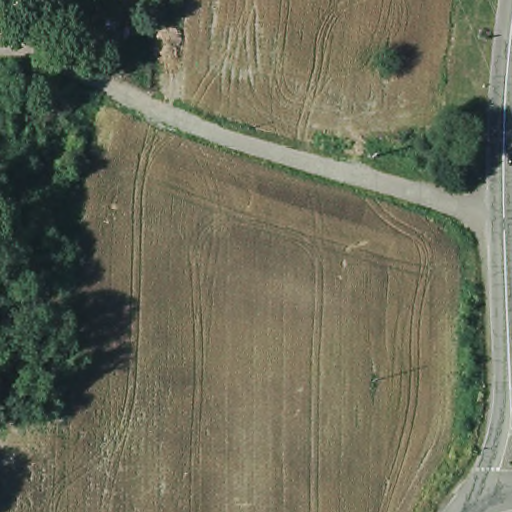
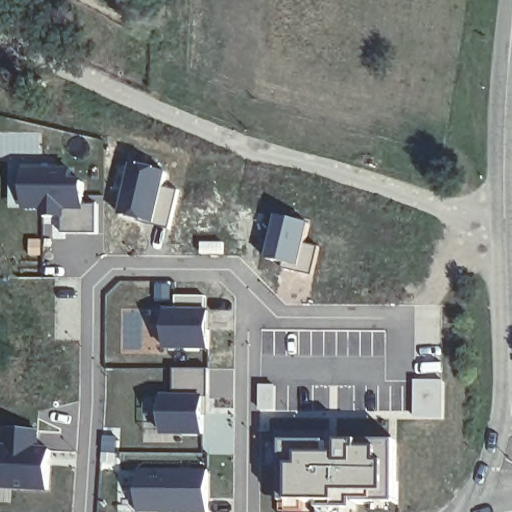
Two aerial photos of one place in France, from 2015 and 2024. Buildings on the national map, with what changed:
new [(132,162),(167,171),(164,188),(177,191),(168,228),(119,215),(132,162)]
new [(97,232),(62,232),(62,215),(44,215),(44,206),(25,206),(25,169),(71,169),(71,181),(84,181),(84,203),(97,203),(97,232)]
new [(275,215),(311,223),(306,243),(320,246),(313,276),(264,259),(275,215)]
new [(209,310),(209,347),(166,347),(166,310),(209,310)]
new [(209,368),(209,397),(204,397),(204,433),(162,432),(163,396),(173,395),(174,367),(209,368)]
new [(449,382),(447,421),(418,421),(417,382),(449,382)]
new [(2,428),(37,430),(36,448),(50,449),(47,487),(0,484),(0,446),(1,446),(2,428)]
new [(357,461),(357,447),(408,448),(407,497),(354,498),(353,506),(307,507),(307,470),(316,470),(316,460),(357,461)]
new [(208,469),(208,512),(138,512),(138,469),(208,469)]

